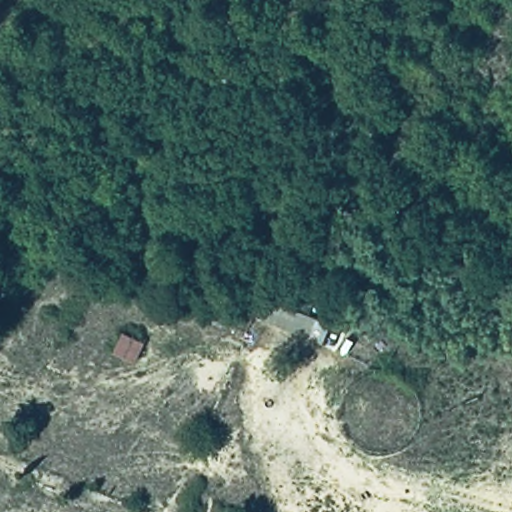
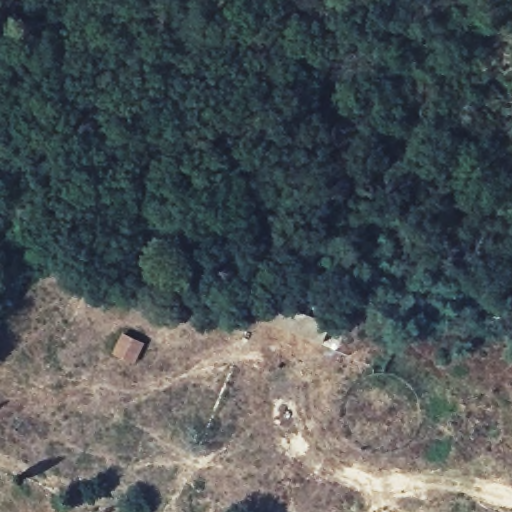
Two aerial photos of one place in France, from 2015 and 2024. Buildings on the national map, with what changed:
unchanged [(265,299),(335,325),(324,345),(257,324),(265,299)]
unchanged [(111,356),(119,336),(146,348),(136,369),(111,356)]

